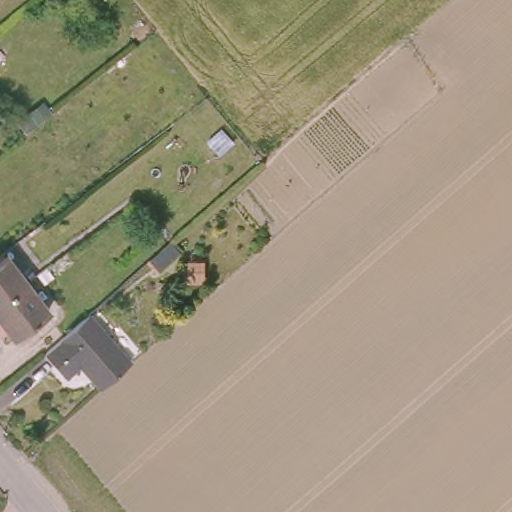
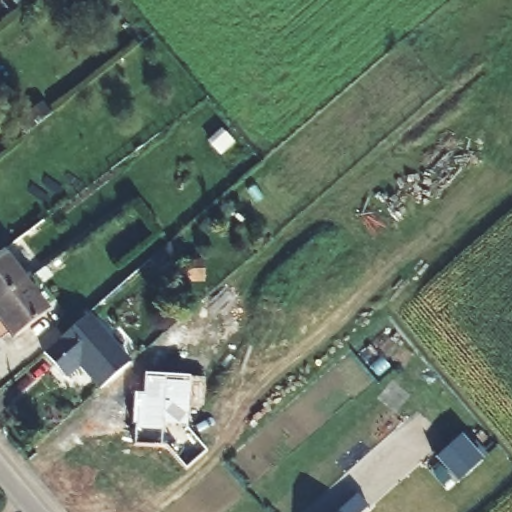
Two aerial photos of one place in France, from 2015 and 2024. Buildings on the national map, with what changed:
unchanged [(0,258),(22,285),(0,302),(0,258)]
unchanged [(13,338),(0,320),(0,302),(22,285),(43,314),(13,338)]
unchanged [(77,361),(64,373),(43,348),(87,309),(127,358),(100,385),(77,361)]
new [(185,427),(206,451),(187,469),(165,445),(134,443),(135,425),(131,425),(133,392),(143,392),(145,374),(190,377),(185,427)]

